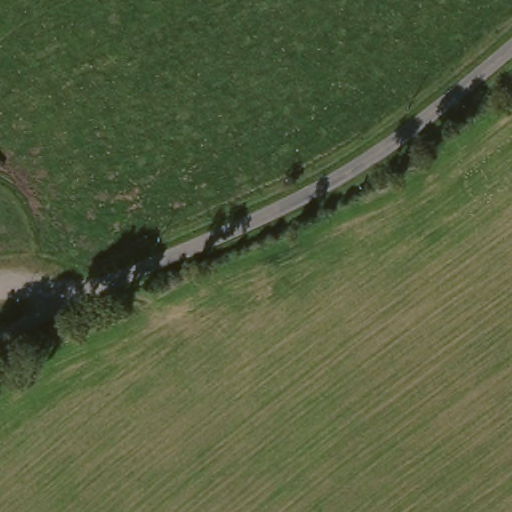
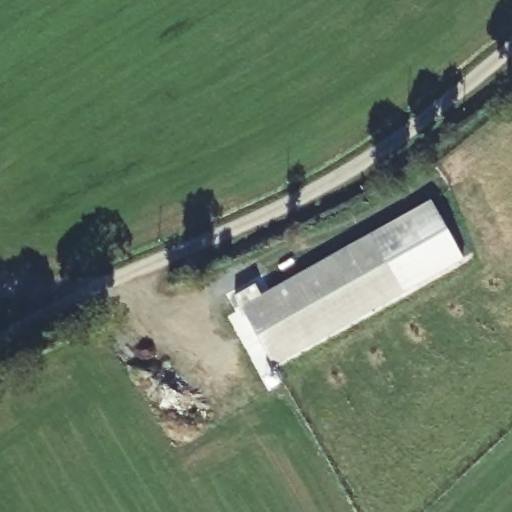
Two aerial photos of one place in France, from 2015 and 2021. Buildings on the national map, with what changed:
new [(432,209),(461,265),(268,366),(239,309),(432,209)]

